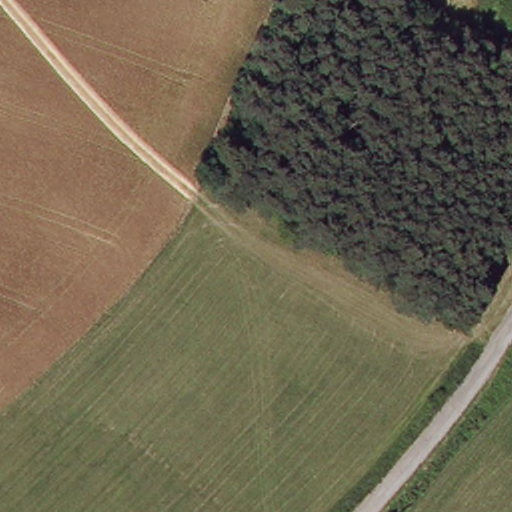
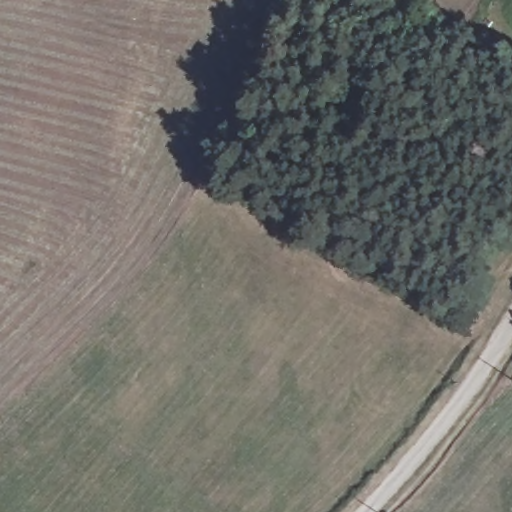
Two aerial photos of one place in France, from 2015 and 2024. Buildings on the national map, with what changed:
[]

